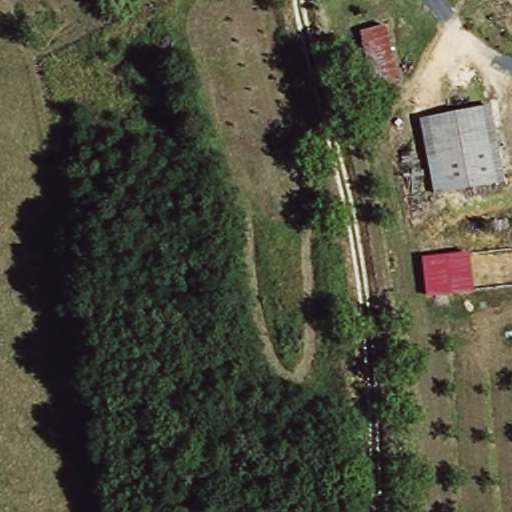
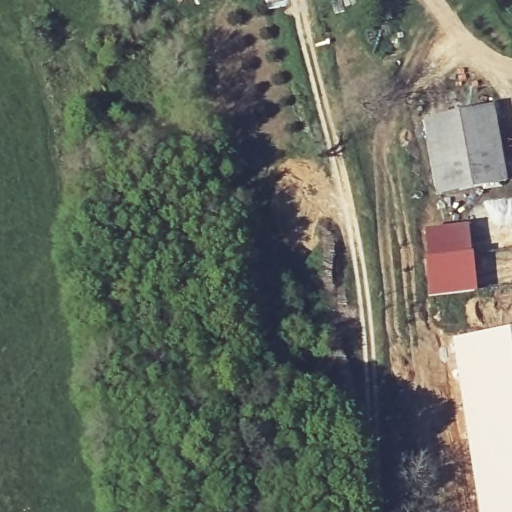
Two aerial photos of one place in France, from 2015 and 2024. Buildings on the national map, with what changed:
demolished [(391,79),(366,83),(355,30),(380,26),(391,79)]
unchanged [(430,193),(416,121),(483,108),(496,180),(430,193)]
new [(476,290),(430,297),(425,259),(430,257),(426,231),(466,225),(476,290)]
new [(512,330),(512,512),(477,512),(450,340),(512,330)]

